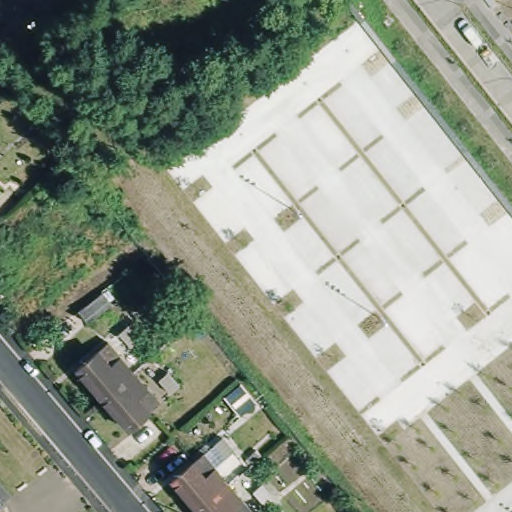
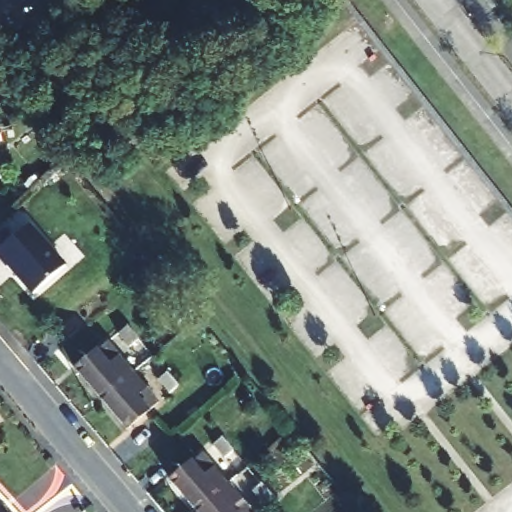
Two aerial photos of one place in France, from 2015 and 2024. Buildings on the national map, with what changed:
demolished [(14,186),(0,198),(0,177),(3,174),(14,186)]
new [(30,293),(0,260),(0,247),(32,221),(69,263),(30,293)]
unchanged [(139,345),(132,352),(120,339),(128,332),(139,345)]
unchanged [(107,404),(80,373),(109,349),(135,379),(107,404)]
unchanged [(160,385),(168,378),(179,392),(170,398),(160,385)]
unchanged [(131,432),(107,404),(135,379),(159,408),(131,432)]
unchanged [(237,457),(228,464),(217,450),(225,443),(237,457)]
unchanged [(199,512),(176,484),(204,460),(230,490),(203,512),(199,512)]
unchanged [(249,512),(203,512),(230,490),(249,512)]
unchanged [(275,502),(267,509),(255,496),(264,490),(275,502)]

